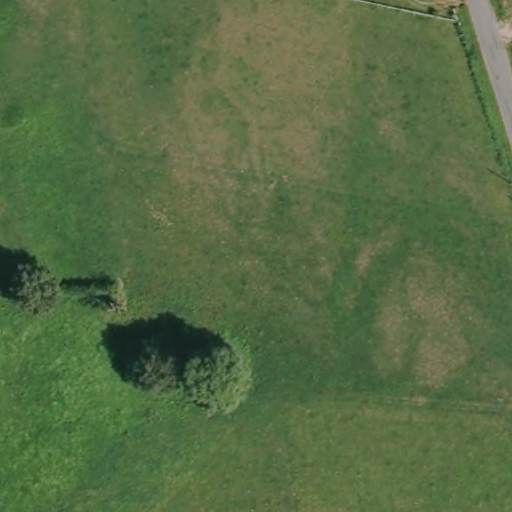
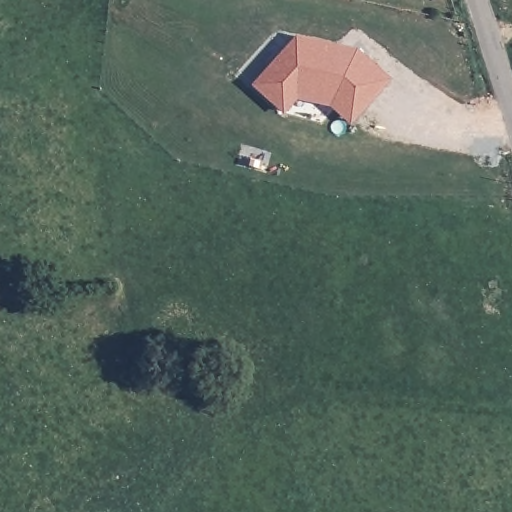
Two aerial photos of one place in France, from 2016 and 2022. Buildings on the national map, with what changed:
new [(328,107),(319,96),(294,94),(275,109),(250,79),(296,39),(335,47),(334,54),(350,58),(358,54),(385,87),(359,108),(341,123),(328,107)]

